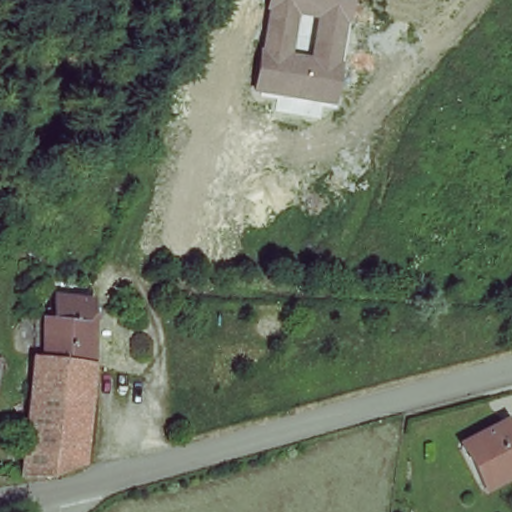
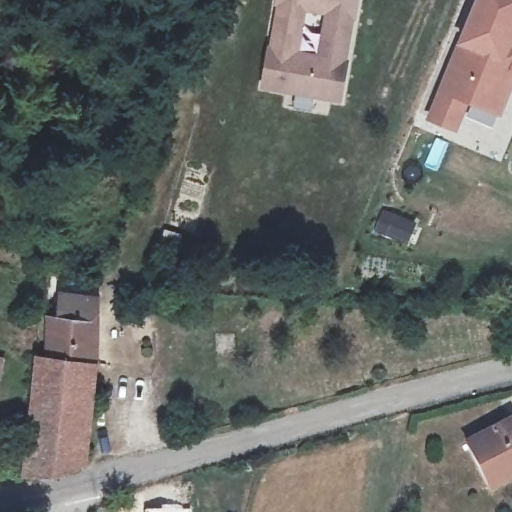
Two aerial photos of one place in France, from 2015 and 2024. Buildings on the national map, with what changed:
unchanged [(275,0),(359,0),(341,102),(259,89),(275,0)]
new [(470,42),(464,40),(480,0),(512,0),(512,61),(501,88),(478,79),(470,97),(458,126),(433,116),(453,68),(459,70),(470,42)]
new [(478,79),(501,88),(512,61),(512,86),(502,111),(470,97),(478,79)]
unchanged [(51,312),(55,312),(60,313),(63,290),(98,293),(97,356),(50,352),(51,312)]
unchanged [(97,356),(90,455),(70,464),(59,469),(50,471),(32,473),(26,474),(30,431),(38,350),(43,351),(46,351),(50,352),(97,356)]
unchanged [(491,486),(465,443),(506,420),(512,429),(512,472),(491,486)]

